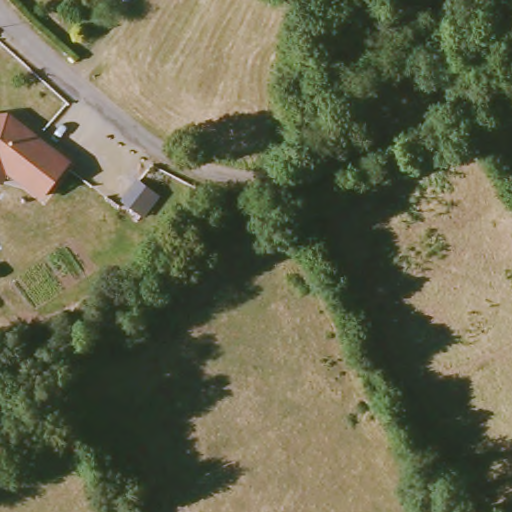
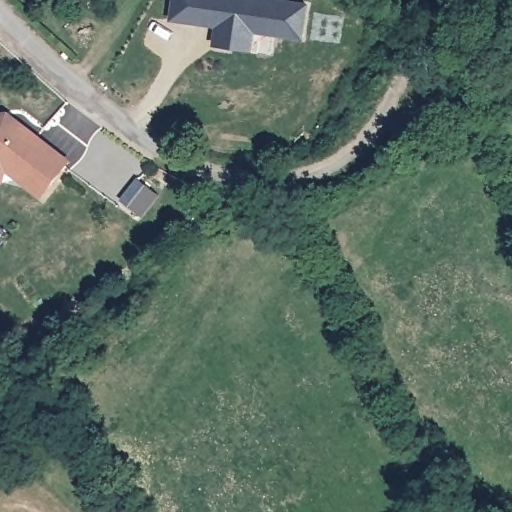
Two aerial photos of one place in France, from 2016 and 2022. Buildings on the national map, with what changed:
new [(255,32),(252,51),(215,45),(216,27),(171,20),(173,0),(292,0),(310,2),(305,41),(255,32)]
unchanged [(8,111),(71,162),(42,201),(6,174),(5,184),(0,182),(0,112),(8,111)]

